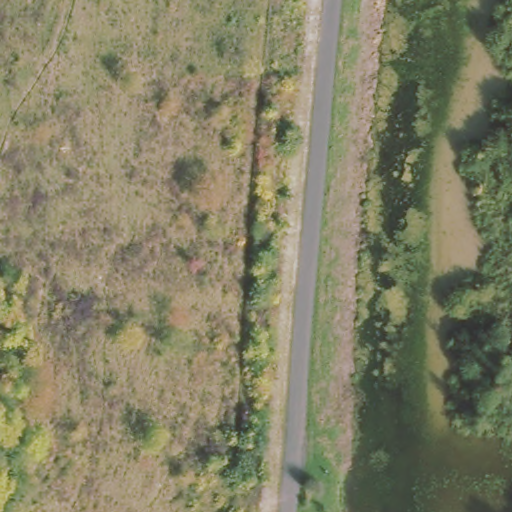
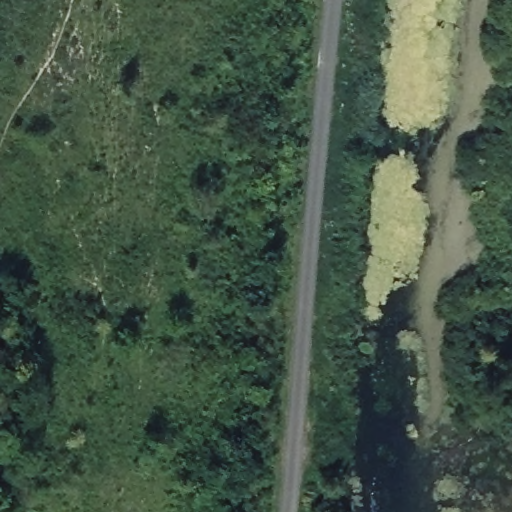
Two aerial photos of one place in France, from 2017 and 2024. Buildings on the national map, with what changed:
[]

